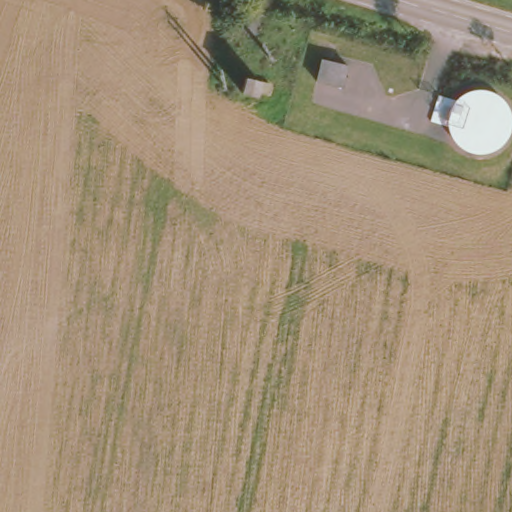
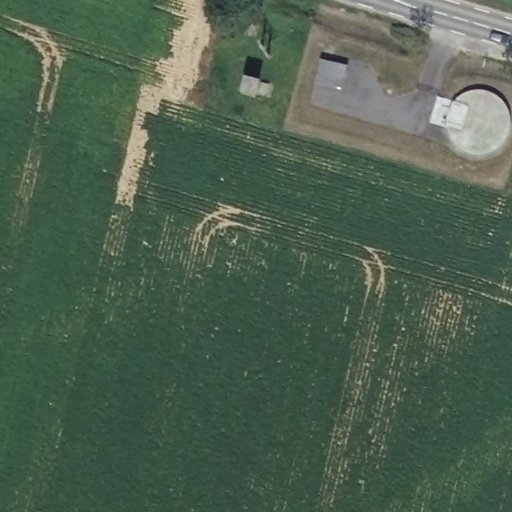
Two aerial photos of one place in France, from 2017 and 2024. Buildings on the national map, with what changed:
unchanged [(322,58),(347,65),(342,85),(317,78),(322,58)]

